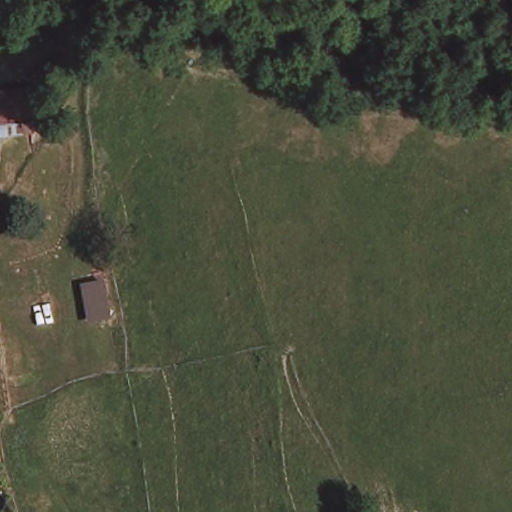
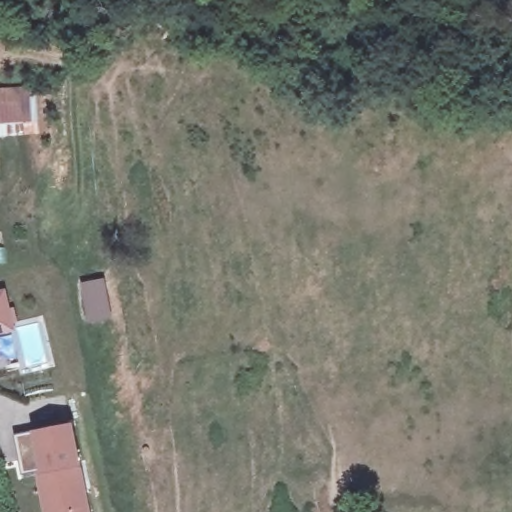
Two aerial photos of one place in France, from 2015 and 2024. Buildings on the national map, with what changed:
unchanged [(19,136),(0,137),(0,85),(17,85),(19,136)]
unchanged [(105,279),(111,321),(89,325),(81,282),(105,279)]
new [(15,332),(0,336),(0,291),(5,290),(15,332)]
new [(72,424),(81,467),(90,512),(42,512),(35,473),(22,476),(14,435),(32,432),(72,424)]

